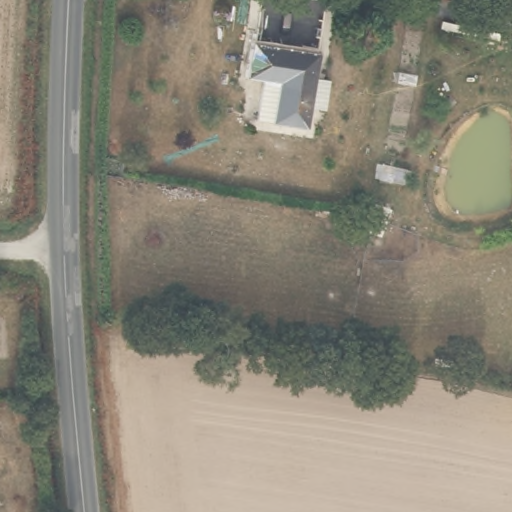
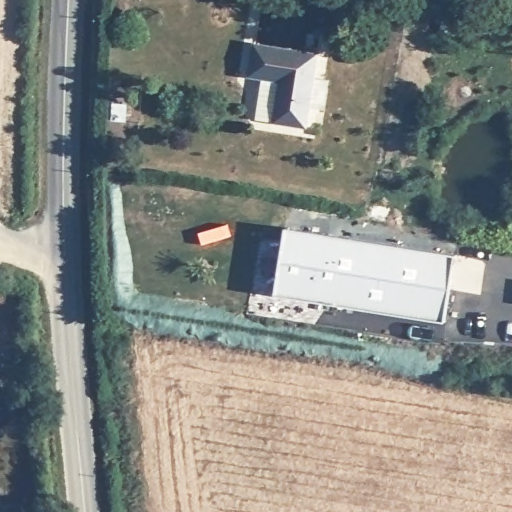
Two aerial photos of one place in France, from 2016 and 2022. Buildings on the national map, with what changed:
unchanged [(249,46),(312,54),(302,128),(270,124),(275,82),(244,79),(249,46)]
new [(283,225),(452,254),(442,321),(273,293),(283,225)]

